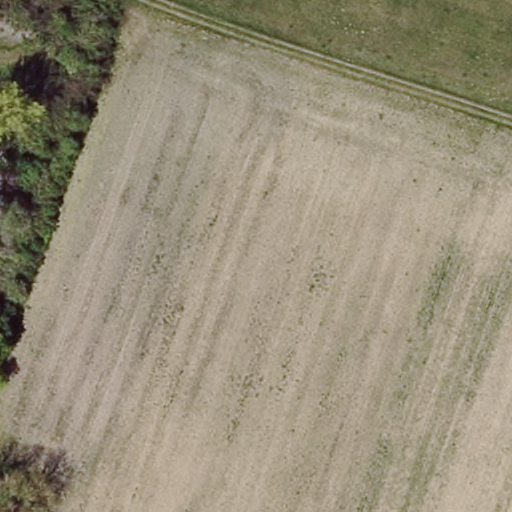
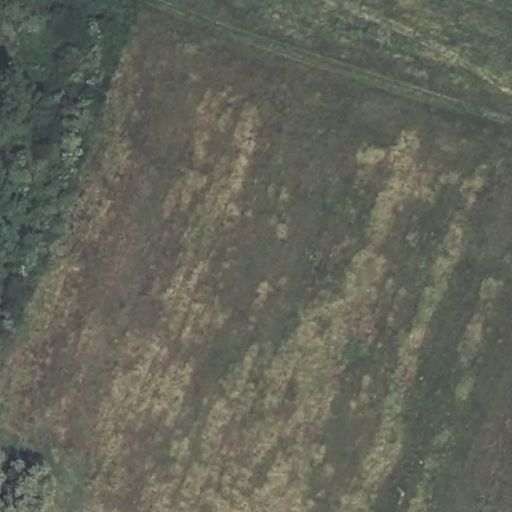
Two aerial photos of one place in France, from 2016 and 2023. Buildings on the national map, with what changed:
[]

